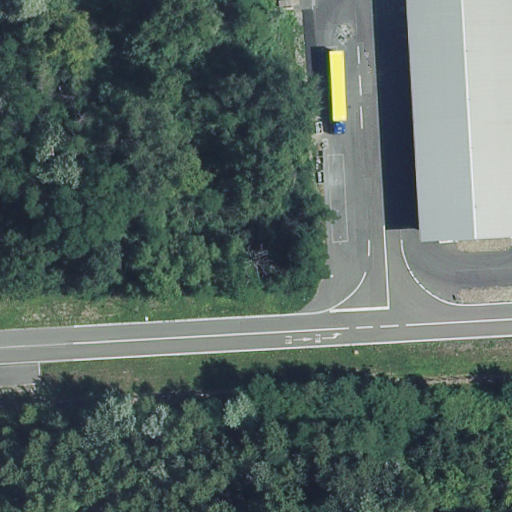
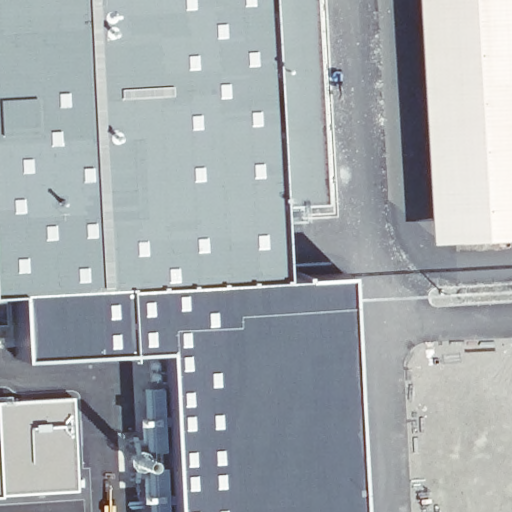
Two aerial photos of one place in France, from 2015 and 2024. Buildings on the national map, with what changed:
new [(275,210),(278,278),(122,290),(18,295),(0,296),(0,0),(315,0),(326,207),(275,210)]
unchanged [(415,0),(512,0),(512,235),(428,243),(415,0)]
new [(122,290),(278,278),(343,277),(357,512),(171,512),(161,350),(19,356),(18,295),(122,290)]
new [(79,402),(84,492),(0,497),(0,405),(79,402)]

